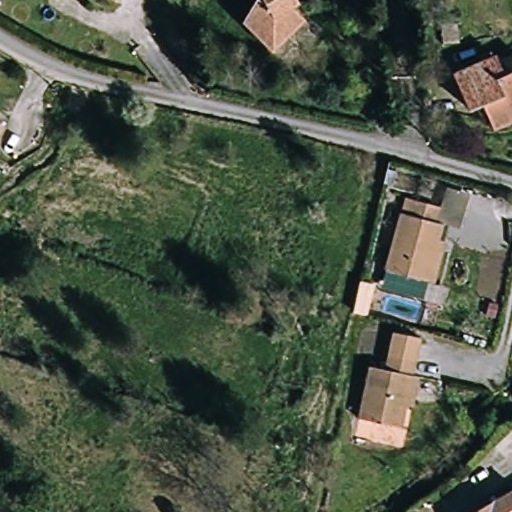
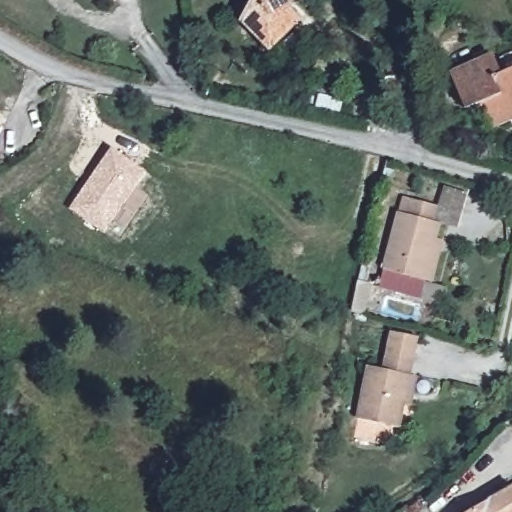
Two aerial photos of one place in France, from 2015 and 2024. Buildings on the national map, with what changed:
unchanged [(303,15),(272,50),(242,23),(256,0),(295,0),(290,5),(303,15)]
unchanged [(489,124),(482,110),(470,113),(455,69),(460,65),(495,56),(500,70),(512,67),(512,129),(508,119),(489,124)]
unchanged [(0,140),(0,123),(8,129),(0,140)]
new [(103,232),(70,208),(113,147),(147,171),(103,232)]
unchanged [(388,266),(391,248),(403,194),(412,196),(415,182),(438,187),(435,203),(442,205),(440,221),(451,223),(444,260),(430,257),(427,274),(388,266)]
unchanged [(359,418),(368,363),(385,365),(385,351),(415,356),(411,374),(424,375),(418,402),(406,401),(402,426),(359,418)]
unchanged [(512,512),(458,512),(512,494),(512,512)]

